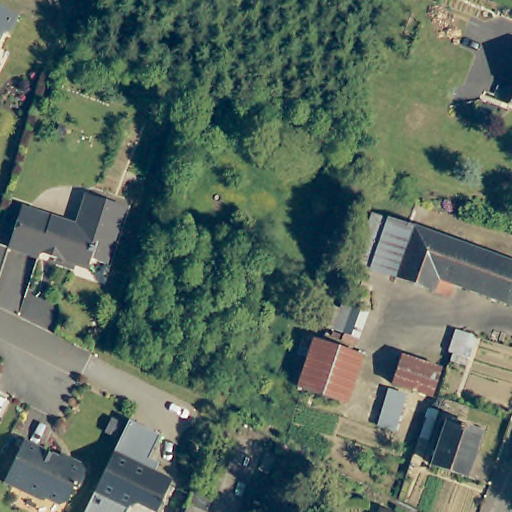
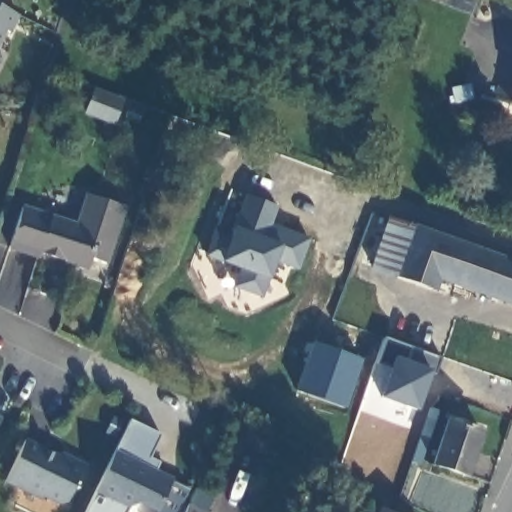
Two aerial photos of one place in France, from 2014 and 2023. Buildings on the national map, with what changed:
unchanged [(0,0),(19,9),(12,27),(5,24),(0,35),(0,0)]
unchanged [(80,219),(91,187),(127,199),(108,256),(94,251),(91,261),(54,249),(52,245),(45,242),(42,251),(12,241),(26,201),(80,219)]
new [(277,209),(268,232),(277,236),(279,229),(308,240),(297,269),(275,261),(262,297),(235,287),(242,269),(207,257),(215,235),(232,241),(247,198),(277,209)]
unchanged [(447,281),(443,291),(367,264),(361,262),(351,259),(368,213),(385,218),(414,228),(512,261),(512,304),(447,281)]
unchanged [(330,327),(338,303),(347,306),(360,311),(349,342),(335,338),(338,330),(330,327)]
unchanged [(458,331),(471,335),(462,356),(451,351),(458,331)]
unchanged [(290,386),(309,338),(332,347),(355,357),(335,404),(313,395),(290,386)]
unchanged [(402,357),(438,369),(437,372),(428,396),(422,393),(393,383),(402,357)]
unchanged [(380,424),(391,390),(403,394),(391,428),(380,424)]
unchanged [(405,410),(409,400),(417,403),(412,415),(405,410)]
unchanged [(0,419),(0,415),(2,416),(0,419)]
unchanged [(154,467),(172,475),(157,506),(140,497),(130,500),(125,512),(84,512),(104,470),(122,432),(130,416),(160,430),(144,462),(154,467)]
unchanged [(485,429),(469,474),(433,461),(450,418),(485,429)]
unchanged [(24,439),(66,458),(67,454),(87,463),(77,485),(74,483),(67,500),(62,502),(44,493),(42,497),(6,480),(24,439)]
unchanged [(212,508),(210,512),(183,512),(188,498),(212,508)]
unchanged [(375,512),(377,506),(394,512),(375,512)]

